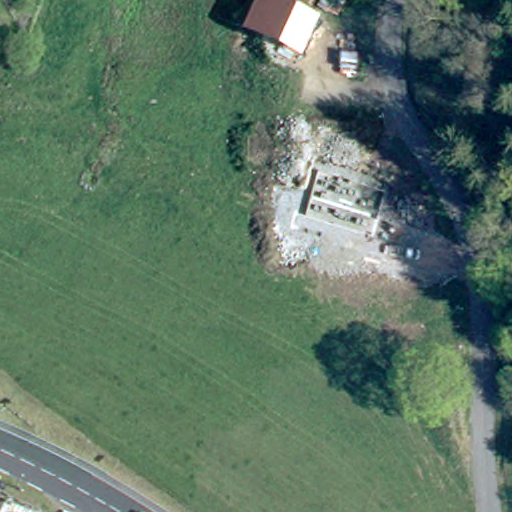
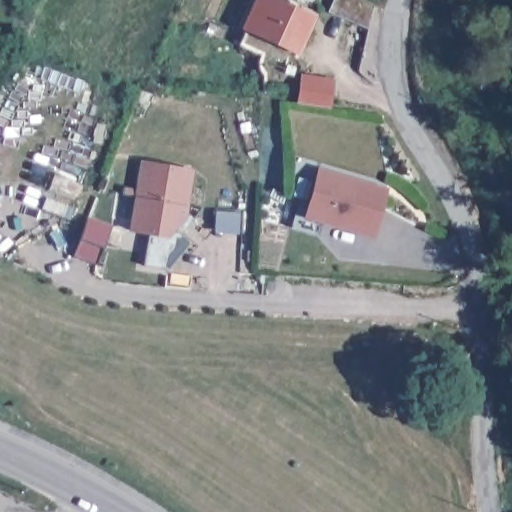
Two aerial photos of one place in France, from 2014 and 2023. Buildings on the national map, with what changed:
unchanged [(280,0),(317,17),(299,57),(241,30),(253,0),(280,0)]
new [(335,80),(331,110),(295,105),(300,75),(335,80)]
new [(180,234),(190,242),(168,270),(144,267),(148,234),(129,232),(134,197),(140,161),(194,169),(189,206),(188,214),(193,219),(180,234)]
new [(388,189),(373,239),(323,224),(319,236),(291,229),(296,207),(305,209),(316,167),(388,189)]
new [(98,263),(73,255),(86,217),(111,227),(98,263)]
demolished [(5,398),(0,406),(0,396),(5,398)]

